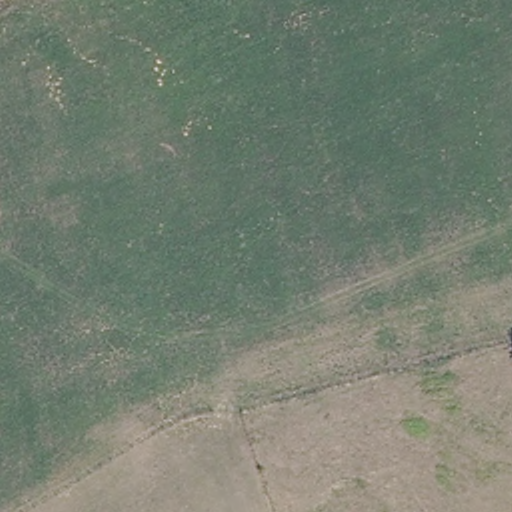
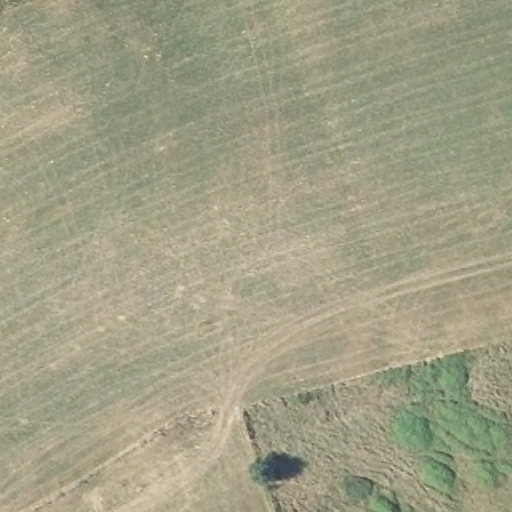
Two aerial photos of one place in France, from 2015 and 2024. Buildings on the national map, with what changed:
[]

